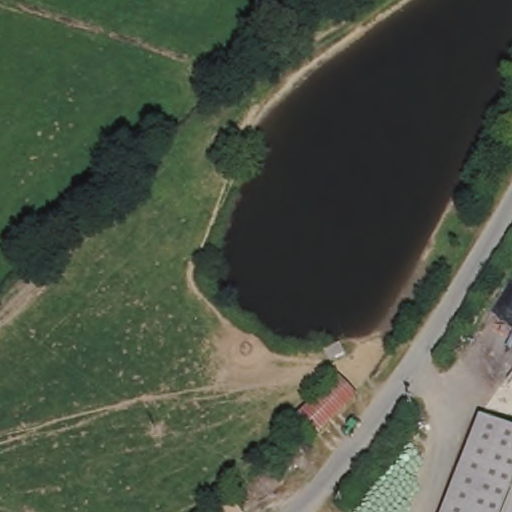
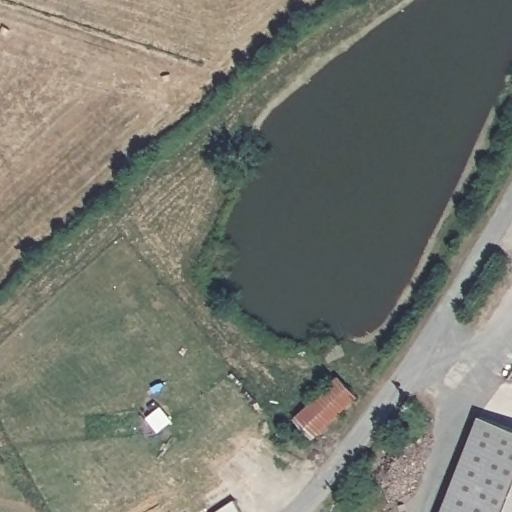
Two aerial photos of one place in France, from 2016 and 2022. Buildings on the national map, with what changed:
unchanged [(358,397),(317,438),(308,430),(303,425),(299,420),(297,418),(330,386),(338,377),(358,397)]
unchanged [(512,430),(512,512),(443,512),(481,418),(512,430)]
unchanged [(236,503),(240,502),(244,506),(247,512),(223,512),(224,511),(236,503)]

